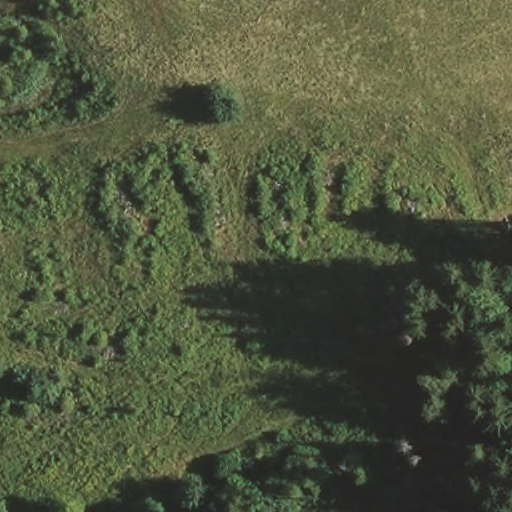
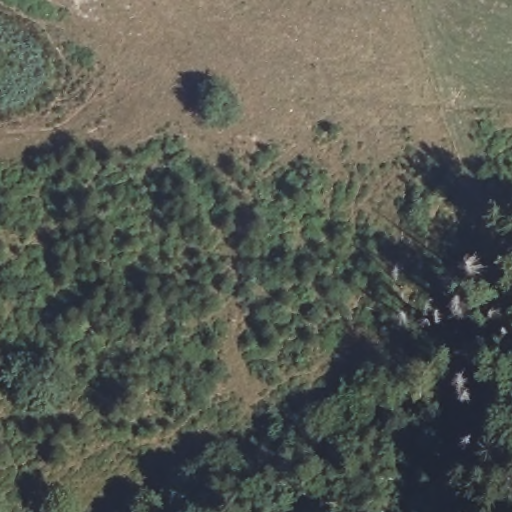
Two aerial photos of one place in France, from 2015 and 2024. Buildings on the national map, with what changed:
[]

